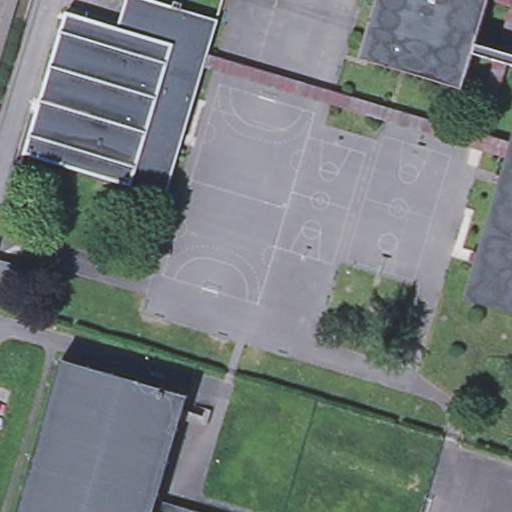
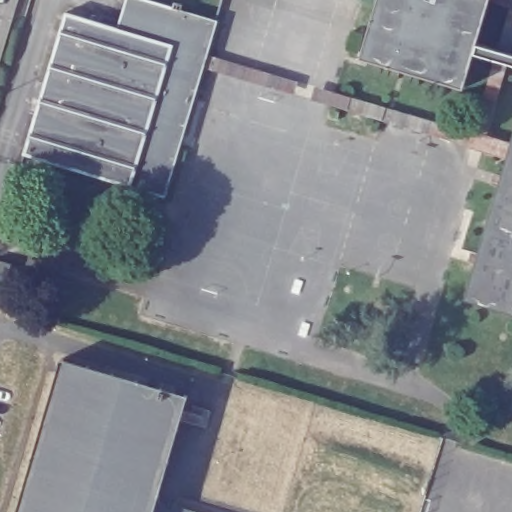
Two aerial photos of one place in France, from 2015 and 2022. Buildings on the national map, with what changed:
unchanged [(207,64),(168,198),(22,155),(65,14),(148,39),(160,0),(185,0),(181,12),(205,20),(207,13),(216,16),(215,22),(218,23),(210,50),(207,64)]
unchanged [(210,50),(473,127),(493,59),(477,54),(480,43),(498,47),(509,6),(492,1),(492,0),(512,0),(512,65),(508,64),(489,134),(508,139),(503,154),(207,64),(210,50)]
unchanged [(358,56),(375,0),(487,0),(462,87),(358,56)]
unchanged [(503,154),(508,139),(512,126),(512,312),(460,296),(503,154)]
unchanged [(9,261),(0,289),(0,258),(9,261)]
unchanged [(62,360),(185,395),(155,499),(199,512),(17,512),(62,360)]

